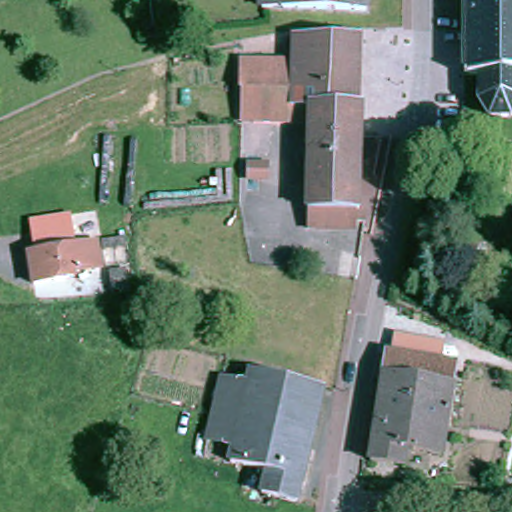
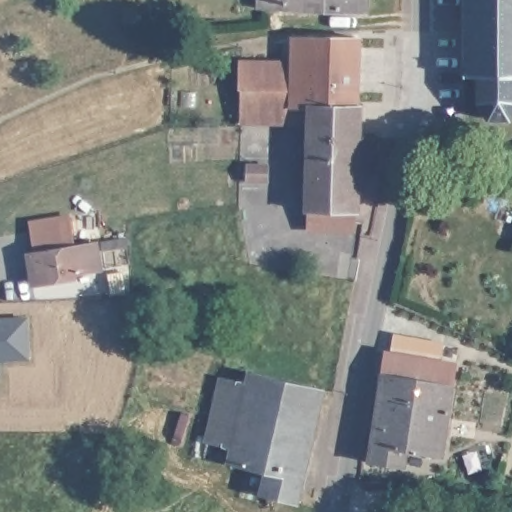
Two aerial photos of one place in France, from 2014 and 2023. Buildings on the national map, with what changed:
unchanged [(270,7),(271,0),(377,0),(377,13),(270,7)]
unchanged [(491,114),(485,103),(484,71),(469,72),(470,0),(512,0),(512,114),(491,114)]
unchanged [(388,38),(388,46),(372,46),(373,38),(388,38)]
unchanged [(300,64),(300,42),(364,43),(364,46),(364,109),(367,109),(366,126),(315,124),(245,124),(247,64),(300,64)]
unchanged [(312,229),(313,211),(315,124),(366,126),(365,213),(364,232),(312,229)]
unchanged [(263,173),(242,173),(243,159),(264,160),(263,173)]
unchanged [(29,220),(69,214),(73,241),(47,246),(33,249),(29,220)]
unchanged [(65,274),(35,279),(29,249),(94,238),(100,263),(71,268),(72,273),(65,274)]
new [(30,359),(0,360),(0,318),(29,317),(30,359)]
unchanged [(400,335),(439,342),(449,344),(446,362),(463,365),(446,459),(410,452),(407,468),(374,461),(393,353),(397,354),(400,335)]
unchanged [(273,473),(237,464),(210,457),(232,376),(257,383),(260,369),(332,391),(302,502),(267,493),(273,473)]

